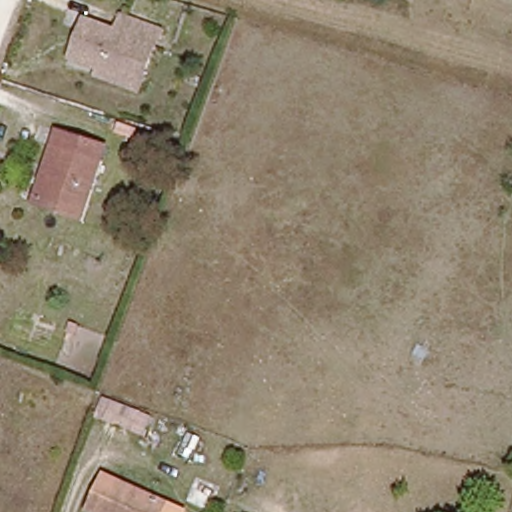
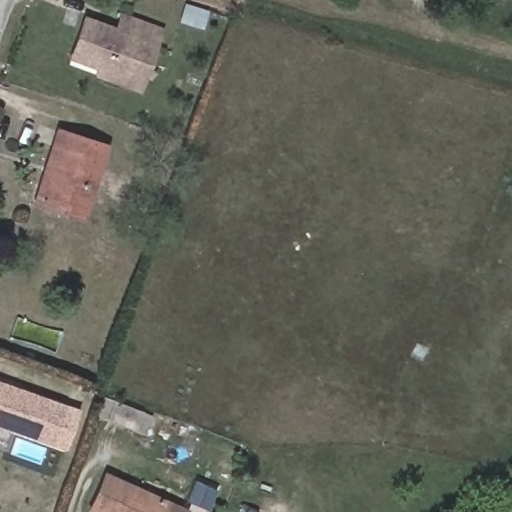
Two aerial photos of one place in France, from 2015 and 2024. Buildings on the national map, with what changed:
unchanged [(71,58),(85,20),(116,31),(122,13),(163,27),(157,45),(141,88),(98,74),(101,68),(71,58)]
unchanged [(55,146),(50,143),(55,128),(103,143),(77,218),(36,206),(55,146)]
new [(51,446),(0,428),(0,380),(65,403),(51,446)]
unchanged [(106,478),(167,501),(189,508),(188,512),(92,512),(106,478)]

